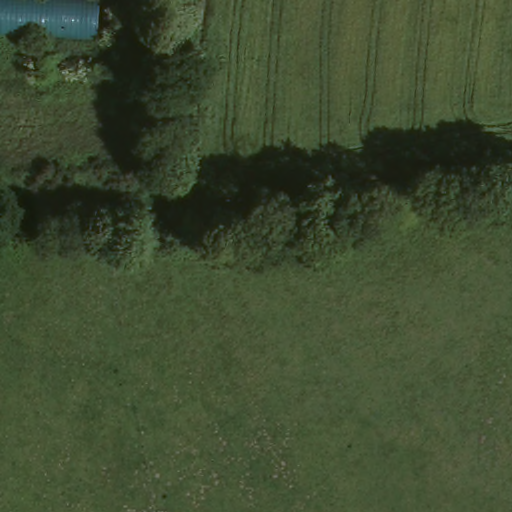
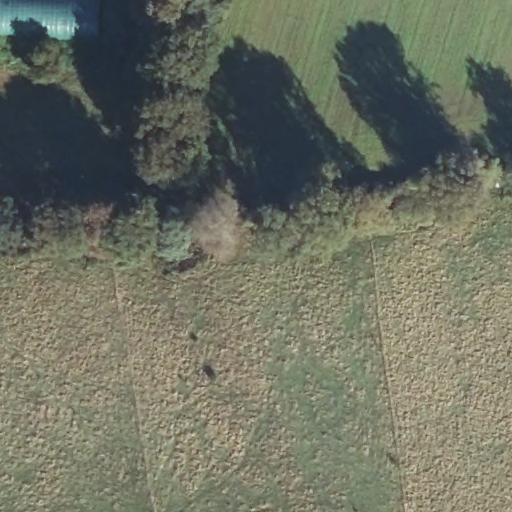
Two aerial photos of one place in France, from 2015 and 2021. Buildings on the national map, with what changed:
unchanged [(100,41),(0,36),(0,0),(101,0),(100,41)]

